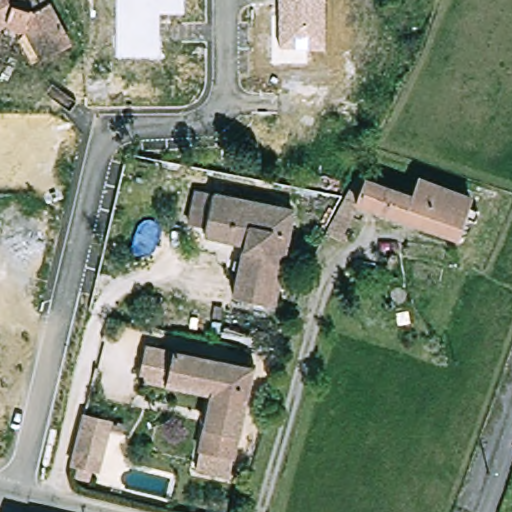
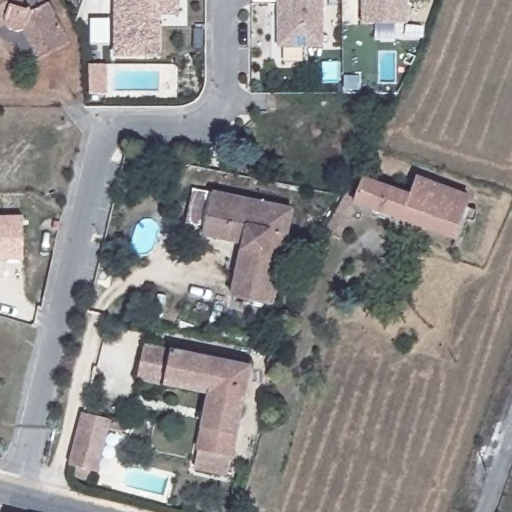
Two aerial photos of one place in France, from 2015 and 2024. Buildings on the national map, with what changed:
unchanged [(19,38),(14,37),(11,34),(9,31),(5,27),(0,30),(0,0),(54,0),(77,41),(49,57),(38,62),(25,38),(19,38)]
new [(180,17),(160,17),(160,58),(114,58),(114,0),(180,0),(180,17)]
unchanged [(322,47),(281,47),(279,0),(321,0),(322,47)]
new [(409,25),(361,24),(361,0),(409,0),(409,25)]
unchanged [(347,237),(336,231),(360,181),(413,200),(420,183),(474,202),(460,241),(362,207),(347,237)]
unchanged [(232,317),(236,297),(246,243),(207,235),(208,231),(189,228),(197,191),(215,195),(294,210),(276,305),(272,324),(232,317)]
new [(24,262),(0,262),(0,216),(23,216),(24,262)]
unchanged [(201,467),(204,450),(215,395),(172,387),(144,381),(150,348),(255,369),(238,457),(235,473),(201,467)]
unchanged [(91,417),(115,423),(104,472),(79,466),(78,466),(90,417),(91,417)]

